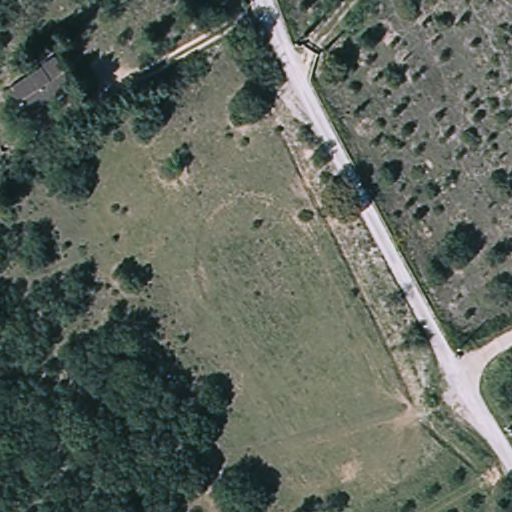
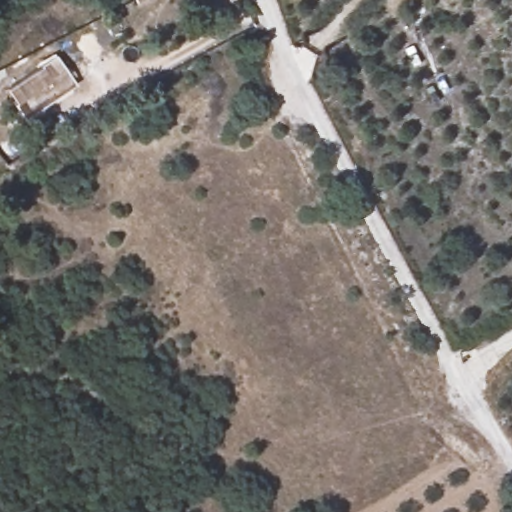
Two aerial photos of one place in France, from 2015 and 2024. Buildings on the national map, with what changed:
unchanged [(47,65),(57,79),(20,103),(11,87),(47,65)]

